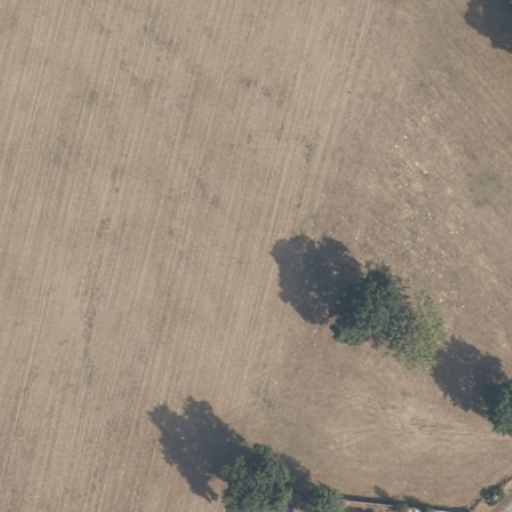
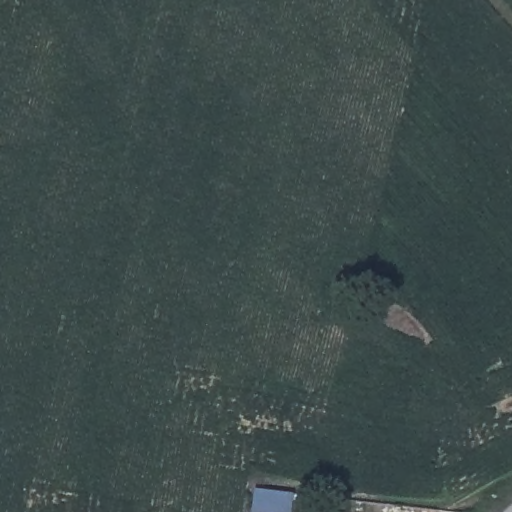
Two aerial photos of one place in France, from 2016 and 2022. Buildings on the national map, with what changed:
new [(253,512),(255,489),(290,496),(288,512),(253,512)]
demolished [(247,512),(248,503),(249,503),(277,507),(276,512),(247,512)]

